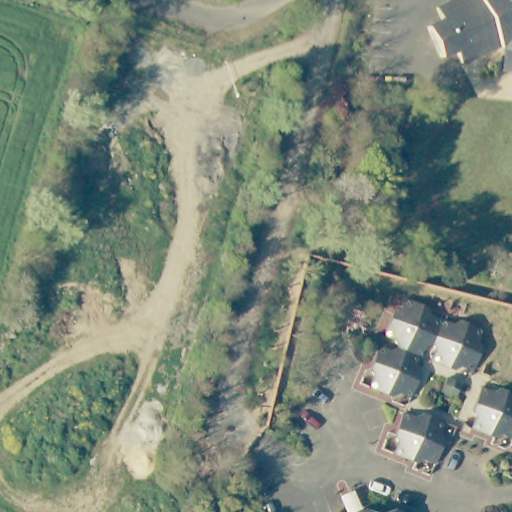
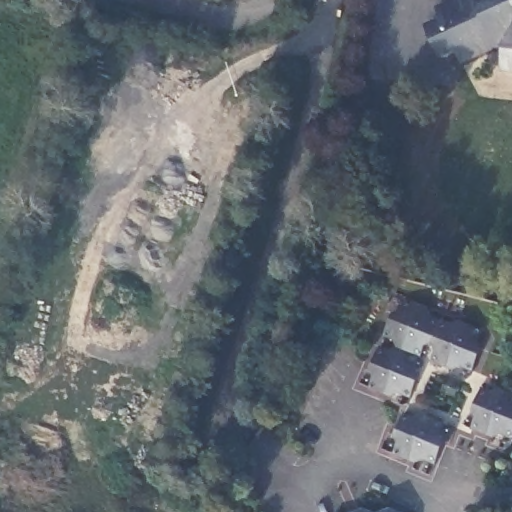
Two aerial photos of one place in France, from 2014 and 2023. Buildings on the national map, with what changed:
unchanged [(502,41),(470,55),(463,44),(448,53),(435,26),(450,14),(444,7),(457,0),(512,0),(512,44),(502,41)]
unchanged [(504,74),(507,49),(512,50),(512,76),(504,74)]
unchanged [(432,348),(422,345),(420,358),(396,353),(398,345),(385,341),(391,318),(403,305),(422,311),(423,318),(438,322),(432,348)]
unchanged [(447,324),(451,316),(478,322),(477,344),(480,346),(474,362),(460,359),(457,368),(435,362),(438,350),(432,348),(438,322),(447,324)]
unchanged [(420,358),(416,372),(423,378),(420,396),(403,394),(402,400),(381,395),(385,383),(375,382),(381,359),(394,361),(396,353),(420,358)]
unchanged [(512,390),(512,429),(510,428),(497,435),(484,431),(486,418),(479,415),(484,391),(499,393),(501,386),(512,390)]
unchanged [(440,438),(444,440),(440,460),(421,455),(420,463),(402,458),(400,442),(406,420),(414,422),(418,416),(442,421),(440,438)]
unchanged [(396,512),(386,512),(388,510),(396,512)]

